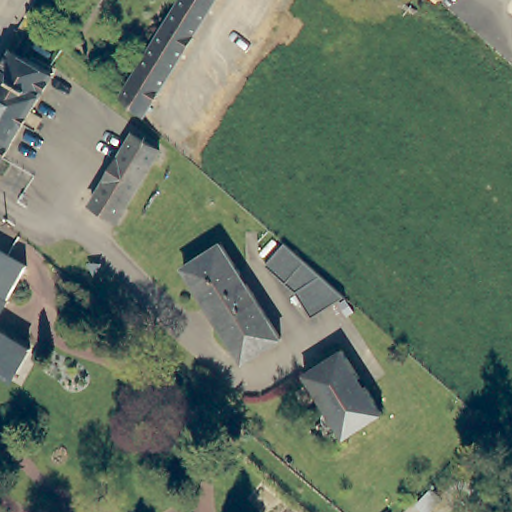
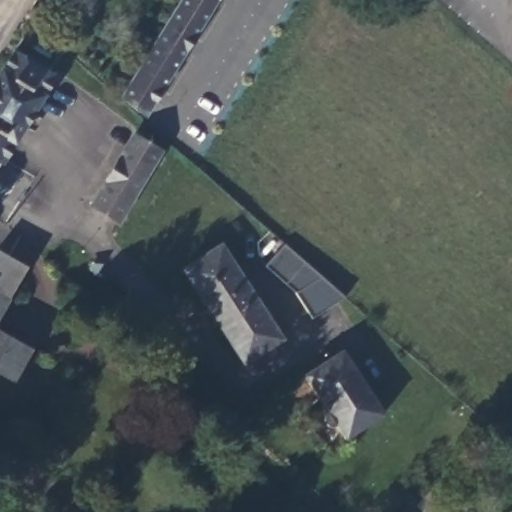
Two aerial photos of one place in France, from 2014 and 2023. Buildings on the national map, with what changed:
unchanged [(125,95),(182,0),(219,0),(148,117),(125,95)]
unchanged [(39,119),(30,133),(21,129),(1,165),(0,165),(0,72),(10,55),(51,78),(30,115),(39,119)]
unchanged [(117,223),(91,208),(133,138),(158,154),(117,223)]
unchanged [(246,359),(186,267),(221,243),(282,335),(246,359)]
unchanged [(348,298),(313,321),(297,297),(266,267),(287,243),(348,298)]
unchanged [(0,273),(15,283),(0,306),(0,273)]
unchanged [(7,380),(0,376),(0,338),(24,353),(7,380)]
unchanged [(346,439),(305,376),(343,352),(384,415),(346,439)]

